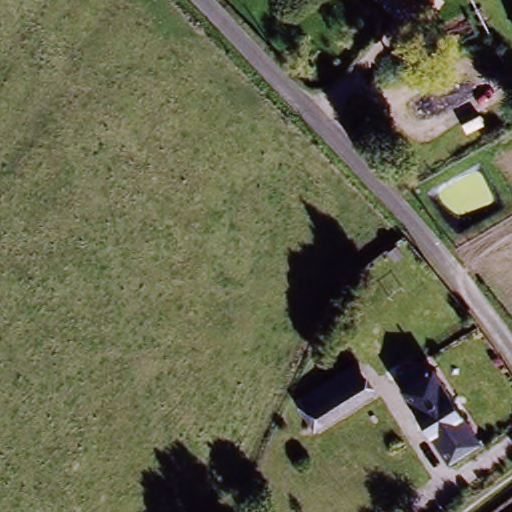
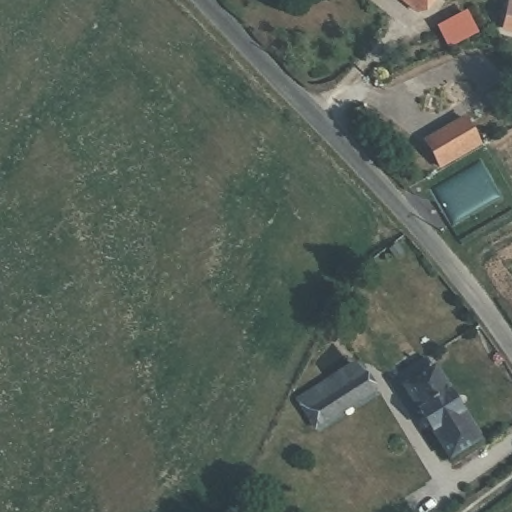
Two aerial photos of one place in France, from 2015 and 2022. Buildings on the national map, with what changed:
unchanged [(395,0),(432,0),(416,19),(395,0)]
new [(471,117),(485,149),(442,173),(426,139),(471,117)]
unchanged [(351,356),(374,392),(317,430),(293,392),(351,356)]
unchanged [(477,442),(444,460),(396,378),(431,364),(477,442)]

